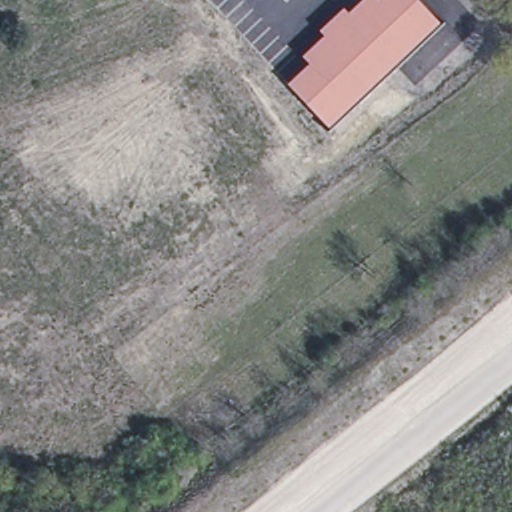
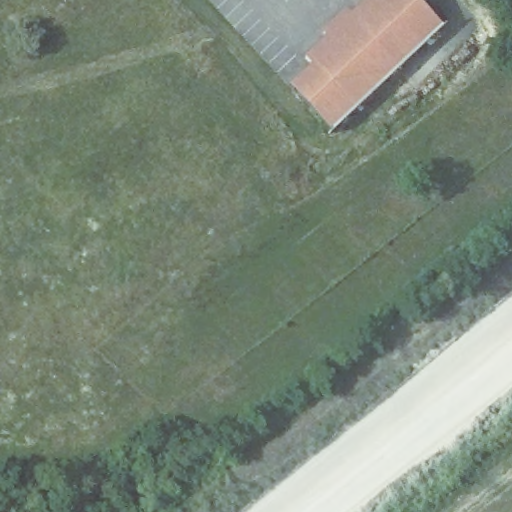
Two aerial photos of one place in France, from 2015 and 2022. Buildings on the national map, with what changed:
unchanged [(363,0),(420,0),(444,24),(331,131),(288,84),(310,64),(302,55),(324,35),(320,30),(344,8),(349,13),(363,0)]

